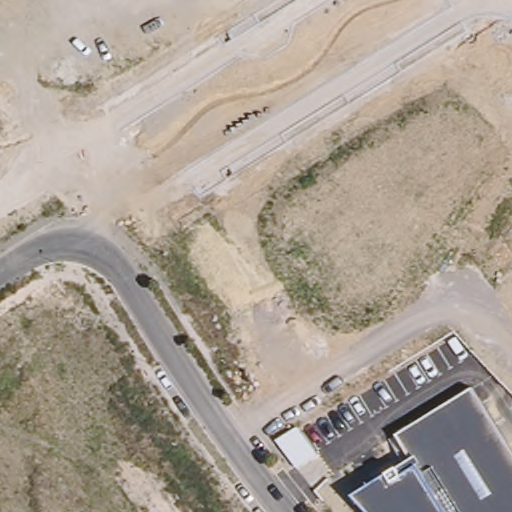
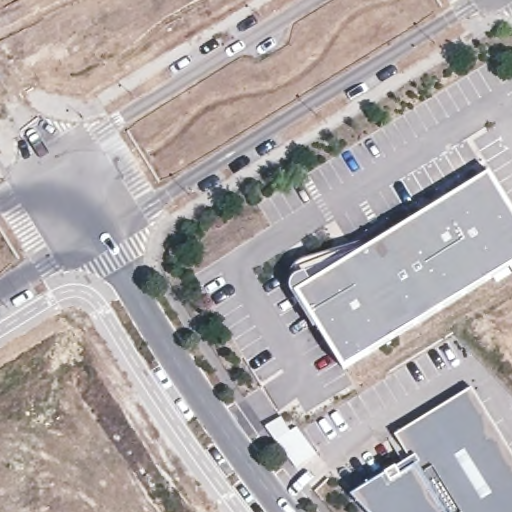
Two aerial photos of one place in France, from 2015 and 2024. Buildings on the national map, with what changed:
new [(301,275),(306,272),(334,264),(379,245),(419,215),(490,170),(512,205),(512,266),(511,264),(344,367),(298,291),(296,285),(297,280),(301,275)]
unchanged [(397,435),(473,387),(512,451),(512,512),(367,512),(352,495),(412,458),(397,435)]
unchanged [(277,440),(297,428),(317,453),(296,467),(277,440)]

